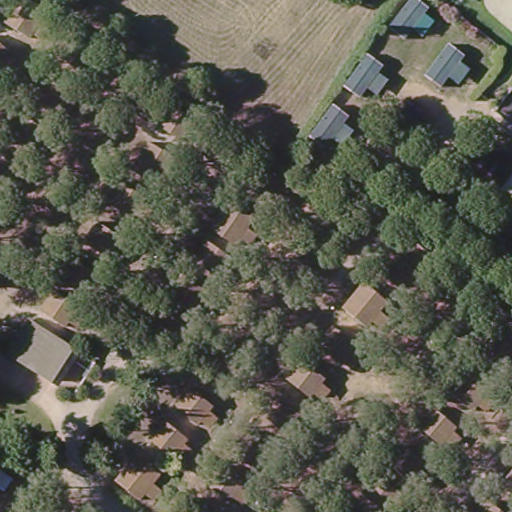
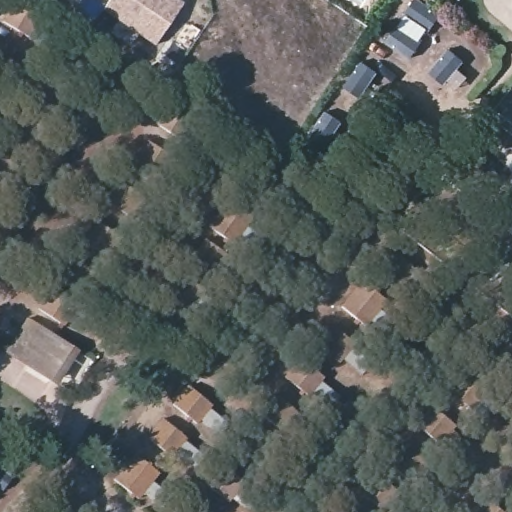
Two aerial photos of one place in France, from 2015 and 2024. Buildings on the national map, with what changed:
new [(109,0),(175,0),(182,5),(155,44),(103,8),(109,0)]
unchanged [(78,306),(65,326),(37,308),(51,288),(78,306)]
unchanged [(50,380),(5,352),(27,318),(71,346),(80,352),(58,385),(50,380)]

